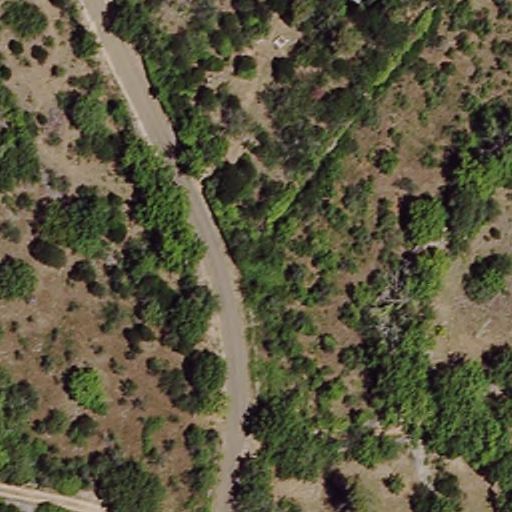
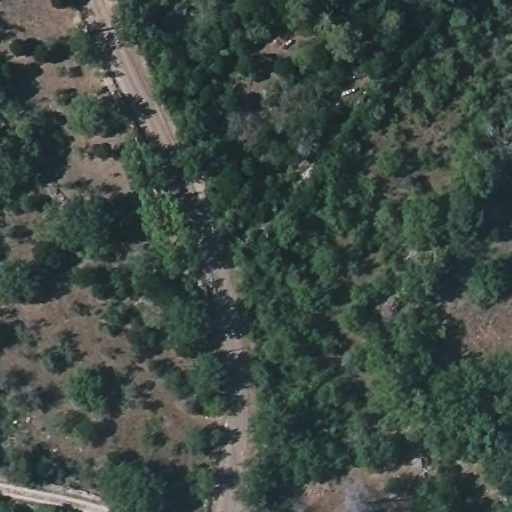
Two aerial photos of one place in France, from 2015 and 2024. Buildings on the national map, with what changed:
unchanged [(350,13),(337,0),(369,0),(350,13)]

